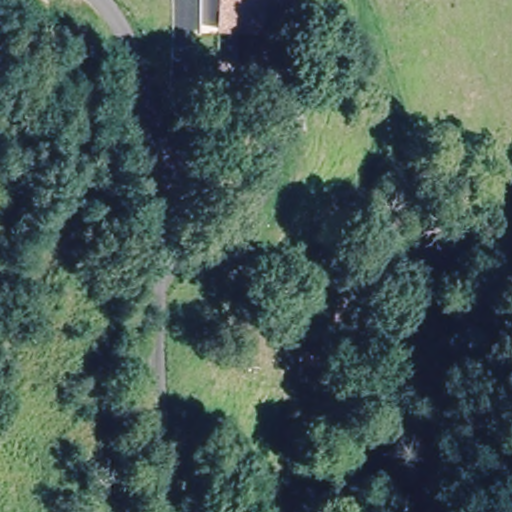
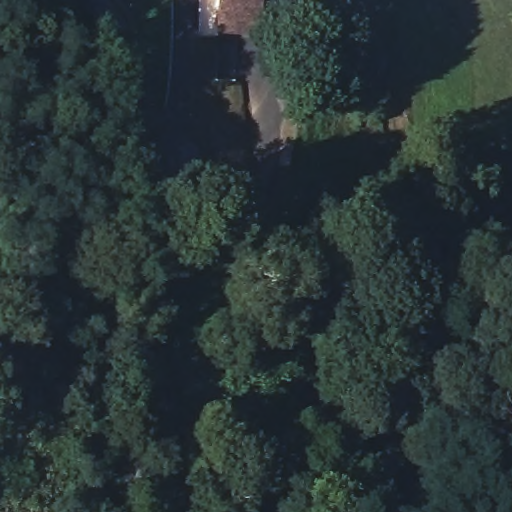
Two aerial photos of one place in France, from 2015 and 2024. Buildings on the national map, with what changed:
unchanged [(215,37),(216,0),(261,0),(260,38),(215,37)]

